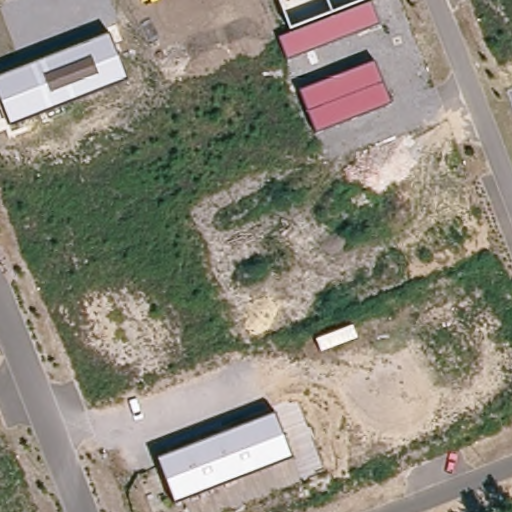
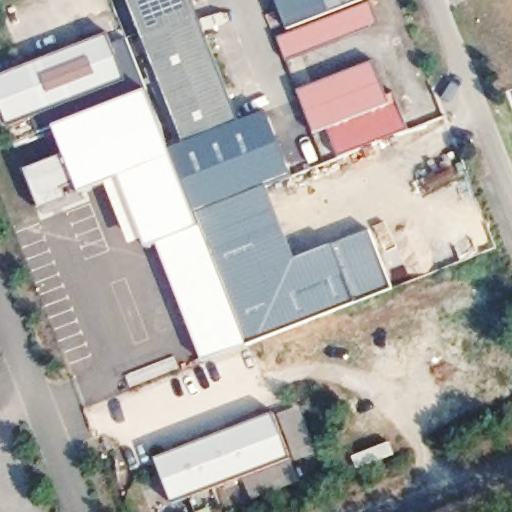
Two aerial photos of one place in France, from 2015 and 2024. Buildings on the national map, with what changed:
new [(188,143),(131,0),(194,0),(241,120),(188,143)]
new [(291,27),(280,0),(364,0),(291,27)]
unchanged [(279,39),(372,2),(381,23),(287,59),(279,39)]
unchanged [(0,76),(110,33),(127,81),(10,124),(0,97),(0,76)]
new [(149,94),(144,96),(54,131),(52,126),(40,131),(35,115),(127,81),(114,44),(126,38),(149,94)]
unchanged [(300,90),(376,61),(393,103),(317,132),(300,90)]
new [(340,156),(329,127),(393,103),(389,95),(396,92),(411,128),(340,156)]
new [(61,161),(50,133),(144,96),(193,218),(199,233),(144,255),(116,184),(38,216),(22,177),(61,161)]
new [(297,259),(329,249),(330,252),(291,268),(260,191),(193,218),(166,152),(188,143),(241,120),(266,112),(292,175),(267,185),(297,259)]
new [(260,191),(291,268),(330,252),(329,249),(366,234),(389,292),(245,349),(199,233),(193,218),(260,191)]
new [(199,233),(245,347),(205,361),(161,249),(199,233)]
unchanged [(178,505),(159,459),(277,412),(295,458),(178,505)]

